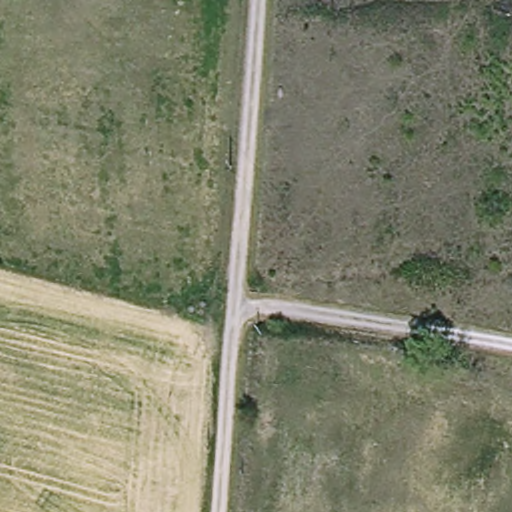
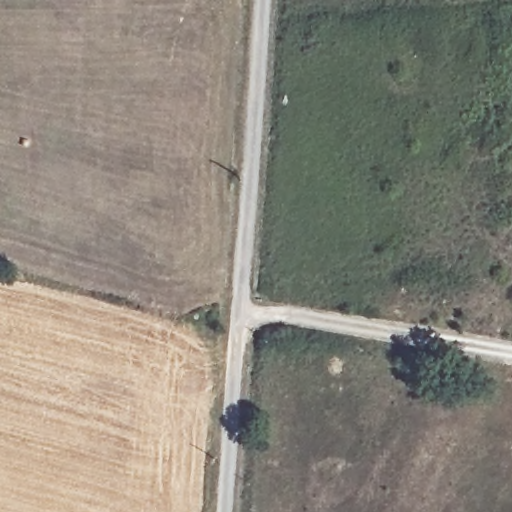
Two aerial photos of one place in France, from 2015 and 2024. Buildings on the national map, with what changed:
[]

